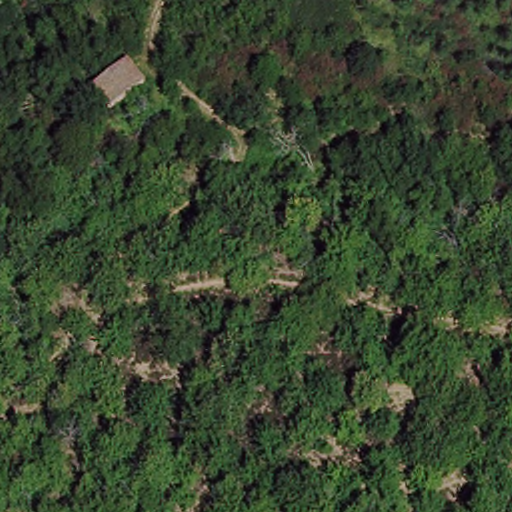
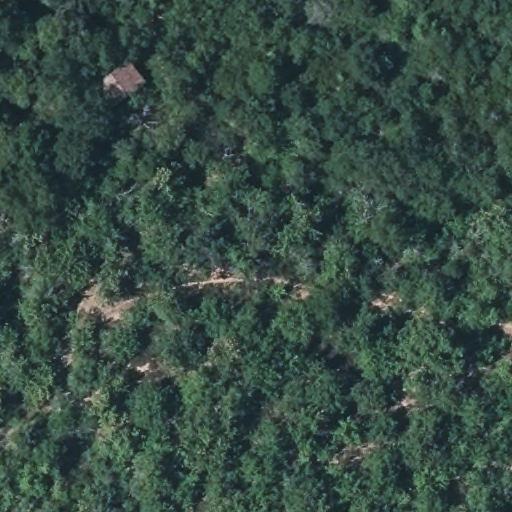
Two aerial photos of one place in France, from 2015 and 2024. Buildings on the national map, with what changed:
unchanged [(148,85),(112,111),(95,89),(130,59),(148,85)]

